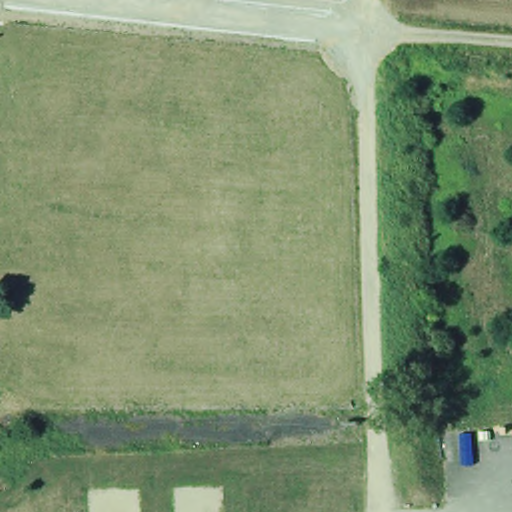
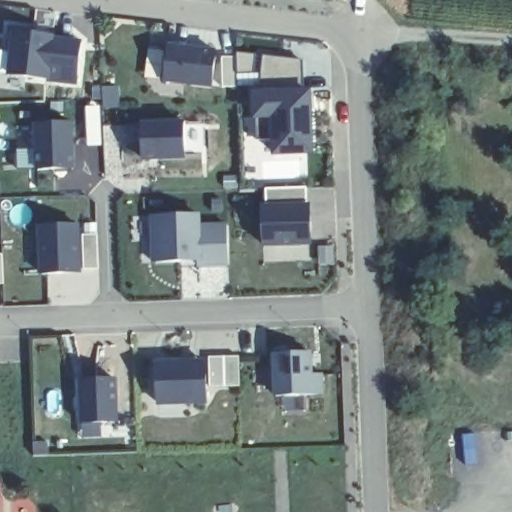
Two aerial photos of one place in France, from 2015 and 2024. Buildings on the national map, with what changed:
new [(78,84),(48,79),(48,81),(9,76),(11,52),(7,52),(10,27),(38,30),(37,35),(53,36),(53,40),(81,44),(78,84)]
new [(163,81),(166,45),(216,50),(213,87),(163,81)]
new [(308,85),(314,160),(269,161),(267,124),(248,124),(246,90),(308,85)]
new [(186,158),(143,159),(142,124),(184,122),(186,158)]
new [(72,125),(73,175),(33,175),(33,126),(72,125)]
new [(309,202),(313,245),(259,250),(255,205),(309,202)]
new [(153,217),(198,216),(198,226),(228,226),(229,265),(199,265),(198,260),(154,261),(153,217)]
new [(79,273),(43,274),(40,227),(77,226),(79,273)]
new [(311,350),(312,372),(323,372),(324,391),(276,394),(275,352),(311,350)]
new [(207,401),(183,402),(184,418),(159,418),(156,364),(206,362),(207,401)]
new [(115,380),(117,426),(78,427),(78,380),(115,380)]

